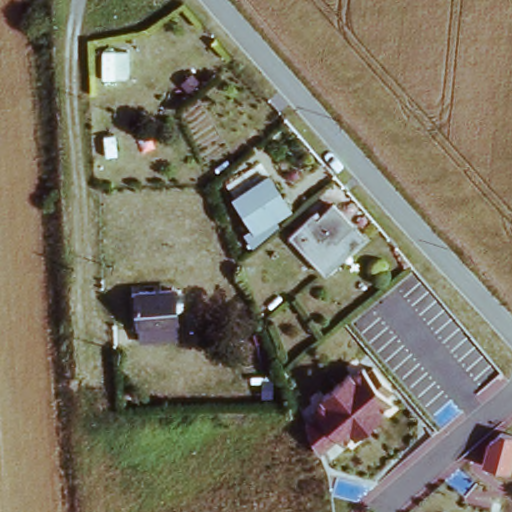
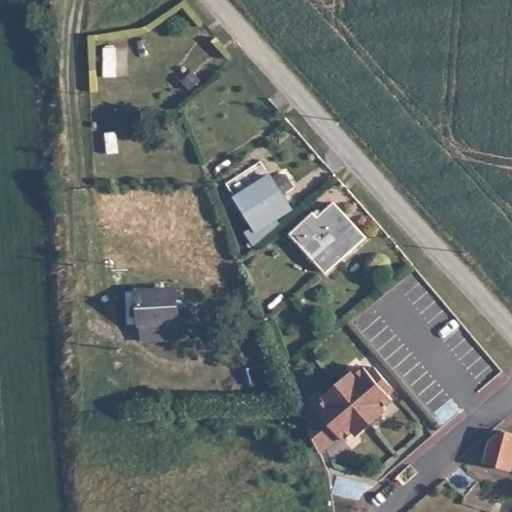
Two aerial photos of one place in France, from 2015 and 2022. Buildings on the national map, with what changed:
unchanged [(260,239),(250,227),(256,221),(239,200),(269,175),(292,202),(278,215),(283,219),(260,239)]
unchanged [(316,214),(322,220),(338,206),(367,239),(327,272),(293,234),(316,214)]
unchanged [(179,293),(182,343),(134,344),(133,294),(179,293)]
unchanged [(365,373),(374,367),(392,388),(387,394),(396,403),(383,412),(388,418),(361,440),(357,436),(345,448),(337,440),(318,453),(303,426),(318,412),(312,404),(359,368),(365,373)]
unchanged [(512,435),(512,478),(478,470),(482,448),(503,432),(512,435)]

